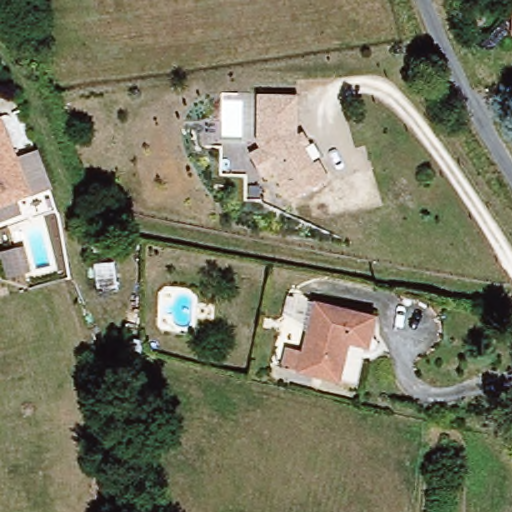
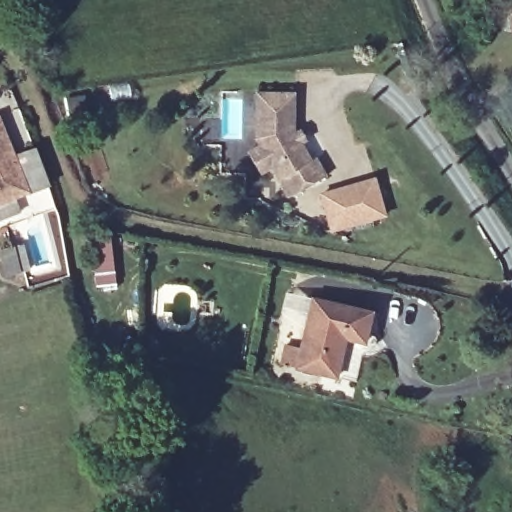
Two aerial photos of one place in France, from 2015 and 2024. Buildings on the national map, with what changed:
unchanged [(245,155),(256,149),(254,144),(256,94),(295,96),(295,130),(297,134),(303,131),(309,142),(303,145),(311,159),(314,157),(326,175),(286,198),(270,170),(259,177),(245,155)]
unchanged [(0,117),(17,157),(36,150),(51,186),(17,200),(25,215),(0,226),(0,117)]
new [(325,215),(319,198),(371,180),(382,215),(342,230),(331,234),(325,215)]
unchanged [(0,250),(8,248),(14,271),(0,275),(0,250)]
unchanged [(290,338),(307,340),(315,300),(366,308),(379,310),(375,335),(379,335),(378,349),(369,351),(363,377),(302,367),(285,363),(290,338)]
unchanged [(114,351),(89,345),(93,331),(115,334),(114,351)]

